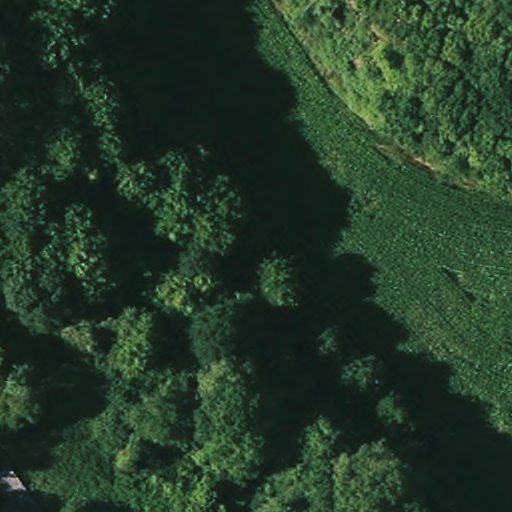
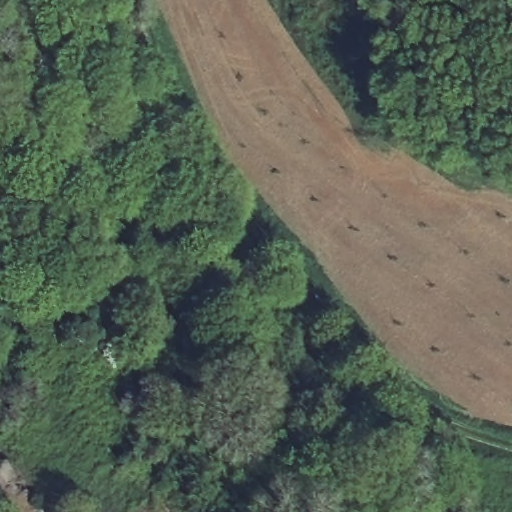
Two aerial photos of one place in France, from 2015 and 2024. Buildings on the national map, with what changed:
unchanged [(7,466),(38,512),(0,512),(0,472),(7,466)]

